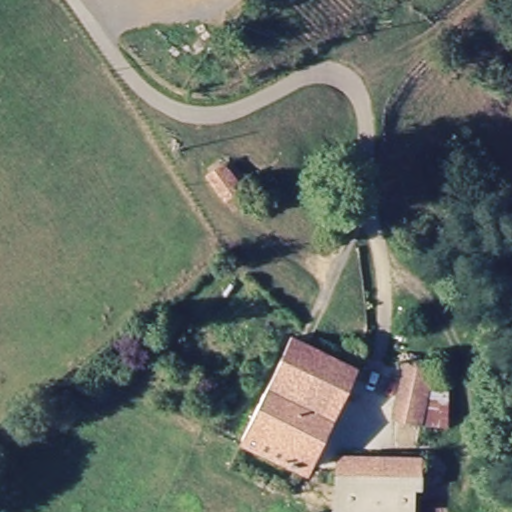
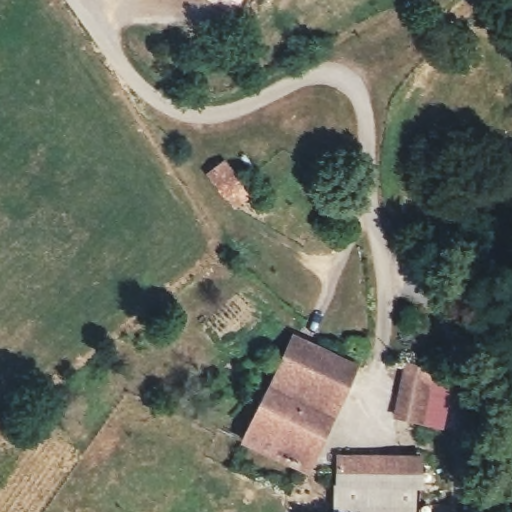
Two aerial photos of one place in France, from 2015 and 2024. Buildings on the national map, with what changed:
unchanged [(247,0),(245,4),(238,0),(247,0)]
unchanged [(240,214),(231,205),(211,183),(226,169),(246,191),(255,200),(240,214)]
unchanged [(315,474),(249,446),(295,337),(359,367),(315,474)]
unchanged [(453,380),(431,432),(405,421),(427,369),(453,380)]
unchanged [(340,466),(415,464),(416,492),(341,494),(340,466)]
unchanged [(417,512),(341,512),(341,494),(416,492),(417,512)]

